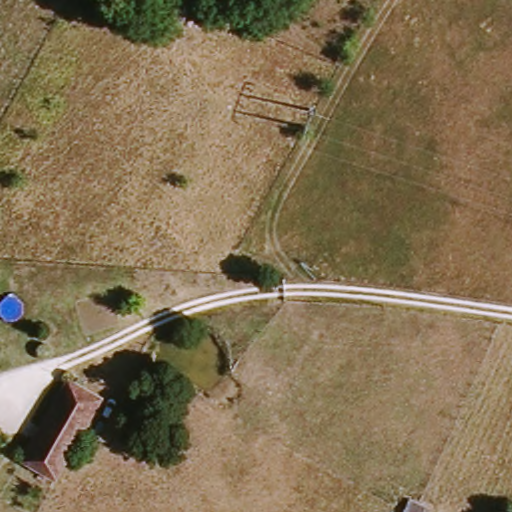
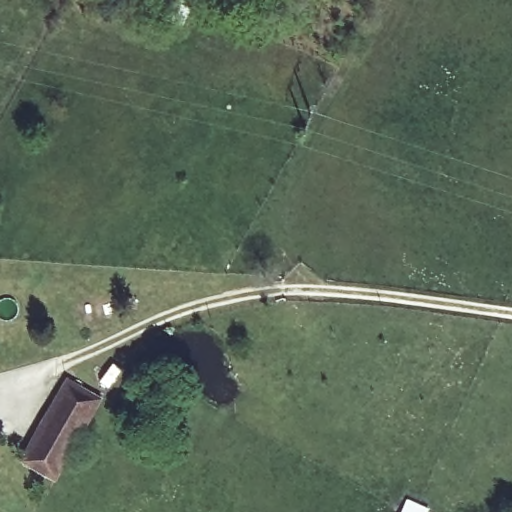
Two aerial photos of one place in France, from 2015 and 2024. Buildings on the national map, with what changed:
unchanged [(68,385),(104,406),(55,483),(21,462),(68,385)]

